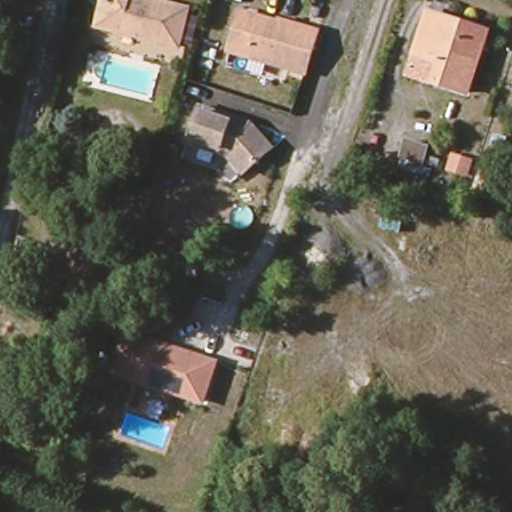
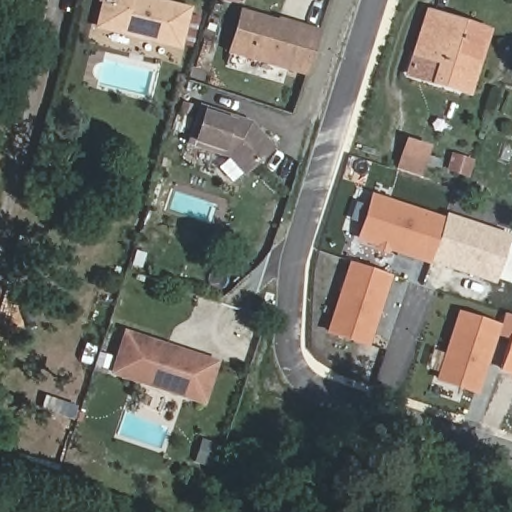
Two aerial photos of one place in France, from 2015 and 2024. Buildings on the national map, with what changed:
unchanged [(173,46),(172,49),(142,42),(144,36),(133,32),(131,37),(94,27),(101,2),(98,1),(98,0),(134,0),(181,12),(180,16),(192,20),(185,49),(173,46)]
unchanged [(304,76),(227,54),(239,14),(284,27),(285,25),(317,34),(304,76)]
unchanged [(431,85),(438,64),(412,56),(426,15),(473,30),(485,34),(481,47),(466,95),(431,85)]
unchanged [(270,145),(241,170),(226,153),(185,140),(197,104),(248,121),(270,145)]
unchanged [(436,175),(421,170),(400,164),(405,148),(425,155),(423,162),(439,167),(436,175)]
new [(430,262),(429,266),(389,251),(388,255),(373,250),(374,247),(355,241),(370,193),(445,218),(447,214),(511,235),(495,285),(430,262)]
new [(324,332),(348,261),(391,275),(368,347),(324,332)]
new [(499,371),(509,340),(497,336),(478,395),(434,381),(456,310),(501,323),(504,313),(512,315),(512,375),(499,371)]
unchanged [(212,365),(200,402),(110,373),(122,335),(212,365)]
unchanged [(81,422),(49,411),(53,398),(86,408),(81,422)]

